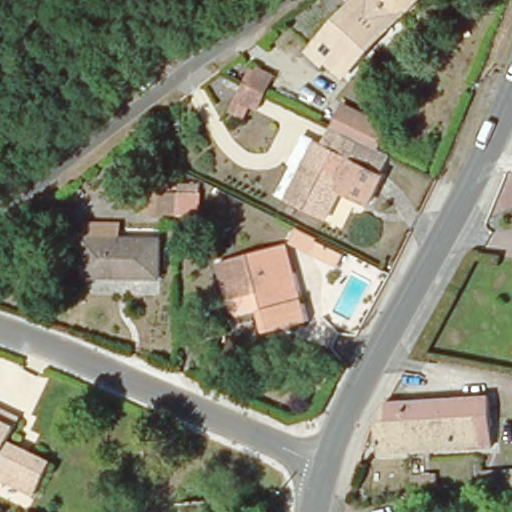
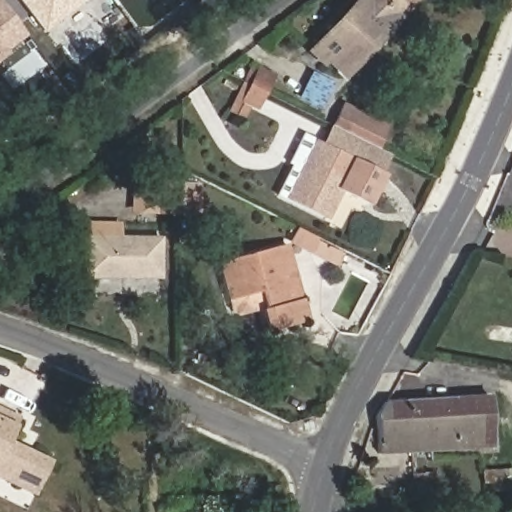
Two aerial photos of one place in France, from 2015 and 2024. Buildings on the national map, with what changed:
new [(16,0),(81,0),(40,32),(16,0)]
unchanged [(353,73),(334,55),(325,62),(314,50),(361,0),(421,0),(423,2),(376,50),(353,73)]
new [(25,38),(0,58),(0,5),(25,38)]
unchanged [(245,99),(251,84),(258,70),(276,78),(269,92),(261,107),(245,99)]
unchanged [(335,129),(342,115),(383,134),(376,149),(391,157),(384,174),(388,176),(373,206),(345,193),(331,222),(293,204),(283,199),(298,169),(293,167),(309,137),(322,145),(327,147),(335,129)]
unchanged [(201,217),(128,212),(130,182),(175,186),(176,179),(200,181),(201,217)]
unchanged [(165,277),(87,278),(87,241),(87,225),(122,225),(122,240),(164,239),(165,277)]
unchanged [(301,254),(308,239),(344,256),(336,271),(301,254)]
unchanged [(292,242),(301,277),(313,322),(269,331),(265,312),(270,311),(266,292),(229,301),(217,261),(280,246),(292,242)]
unchanged [(392,398),(493,395),(495,446),(387,450),(386,431),(384,413),(392,398)]
unchanged [(9,449),(51,469),(35,501),(0,484),(0,416),(4,418),(20,426),(9,449)]

